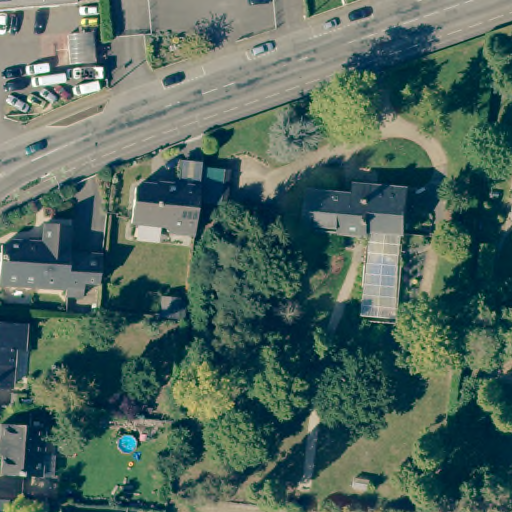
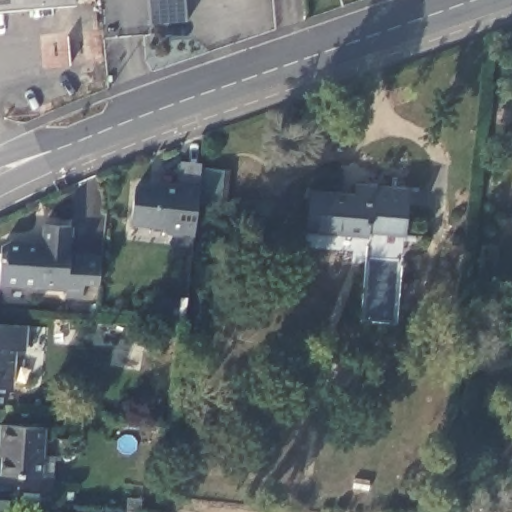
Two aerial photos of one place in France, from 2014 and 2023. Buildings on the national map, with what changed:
unchanged [(0,12),(0,0),(73,0),(73,6),(0,12)]
unchanged [(191,236),(162,232),(162,227),(129,223),(135,185),(164,187),(165,182),(179,184),(182,160),(200,162),(199,165),(232,169),(226,205),(195,201),(193,226),(191,236)]
unchanged [(403,229),(401,229),(367,225),(366,225),(365,235),(307,228),(311,187),(352,192),(353,182),(407,187),(403,229)]
unchanged [(77,287),(75,301),(57,300),(57,293),(10,288),(0,287),(0,244),(16,235),(44,237),(46,221),(73,225),(69,253),(96,256),(93,289),(77,287)]
unchanged [(401,229),(395,312),(362,311),(367,225),(401,229)]
unchanged [(21,326),(19,348),(9,351),(5,387),(0,387),(0,324),(21,326)]
unchanged [(1,476),(6,426),(42,430),(40,462),(45,462),(42,480),(1,476)]
unchanged [(2,510),(1,512),(0,512),(0,509),(2,510)]

